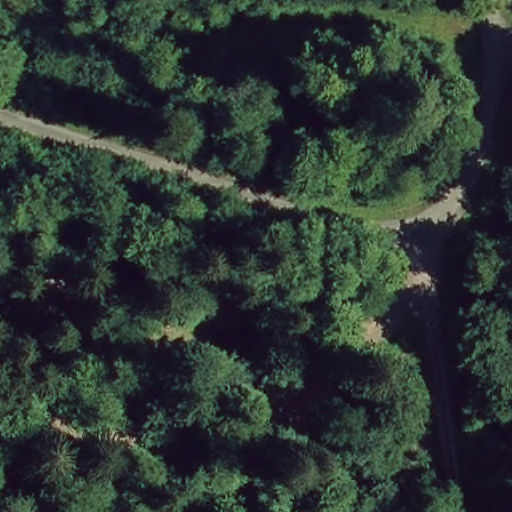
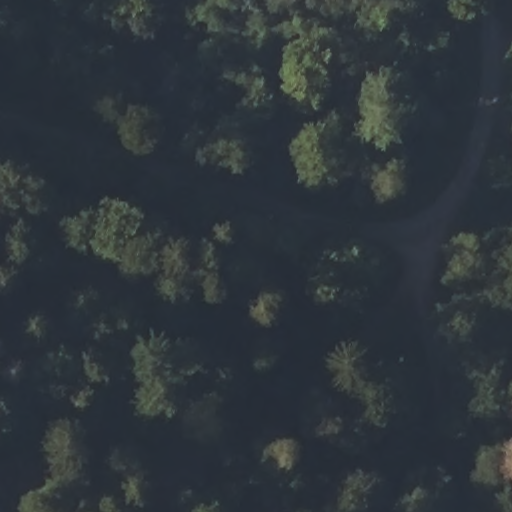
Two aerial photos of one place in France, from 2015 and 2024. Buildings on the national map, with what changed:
[]

